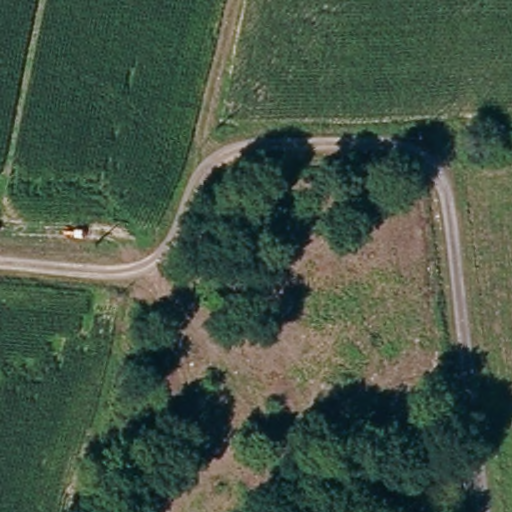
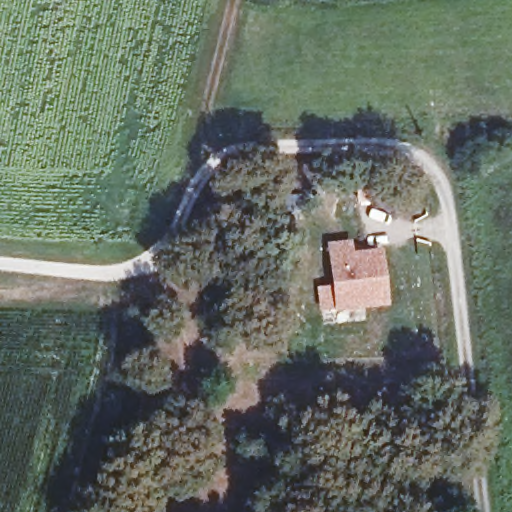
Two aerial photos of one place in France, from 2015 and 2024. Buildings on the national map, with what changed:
new [(354,250),(383,247),(390,304),(335,310),(335,306),(319,308),(318,285),(332,283),(327,240),(353,238),(354,250)]

